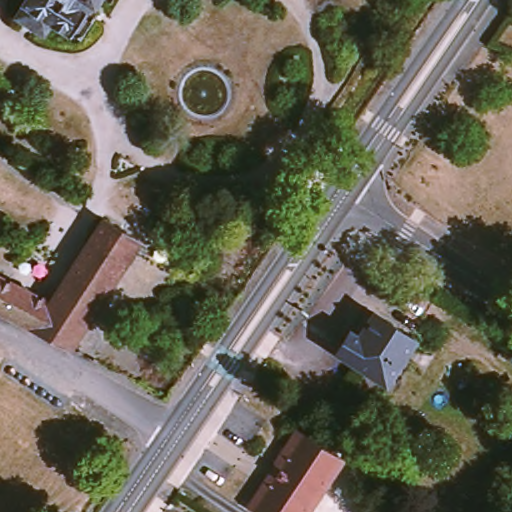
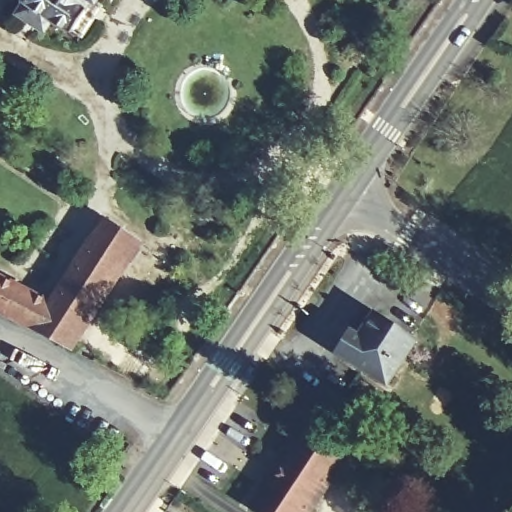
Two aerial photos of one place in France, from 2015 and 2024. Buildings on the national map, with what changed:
unchanged [(38,26),(25,17),(22,8),(28,0),(98,0),(97,2),(93,1),(72,32),(52,19),(49,26),(38,26)]
unchanged [(0,277),(52,304),(105,216),(139,238),(70,347),(0,311),(0,277)]
unchanged [(359,336),(375,311),(417,339),(386,384),(337,351),(351,330),(359,336)]
unchanged [(275,461),(273,460),(295,428),(341,459),(310,504),(265,475),(275,461)]
unchanged [(310,504),(304,512),(256,512),(245,504),(265,475),(310,504)]

